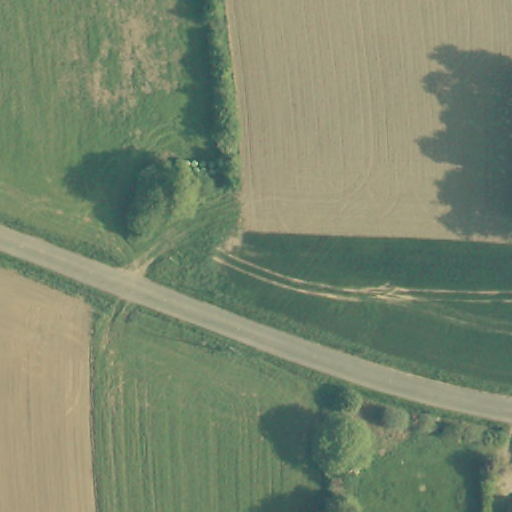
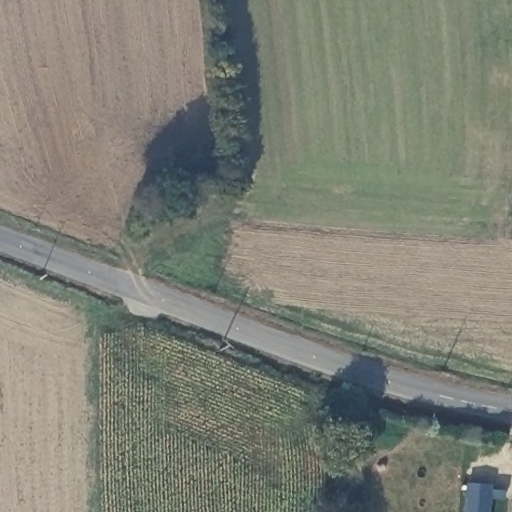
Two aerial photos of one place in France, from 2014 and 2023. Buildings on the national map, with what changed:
new [(466,485),(491,486),(491,491),(505,492),(504,500),(491,500),(489,512),(464,512),(466,485)]
unchanged [(511,492),(512,493),(512,512),(507,512),(511,492)]

